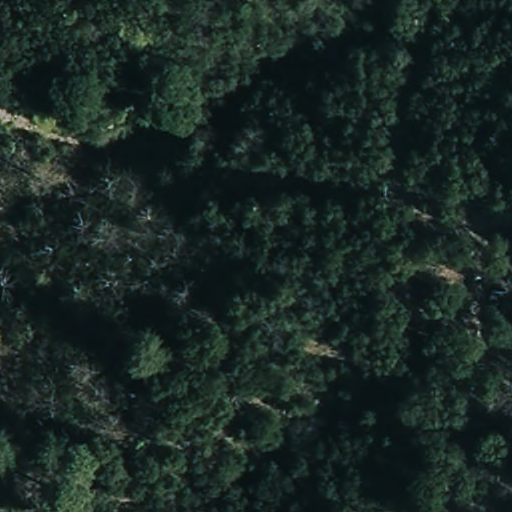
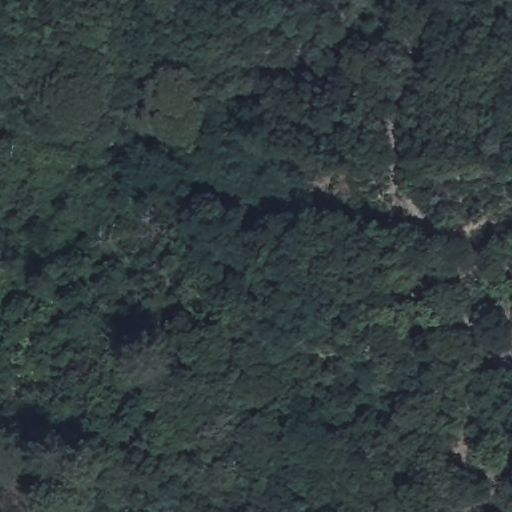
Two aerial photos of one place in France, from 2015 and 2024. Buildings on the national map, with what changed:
[]

